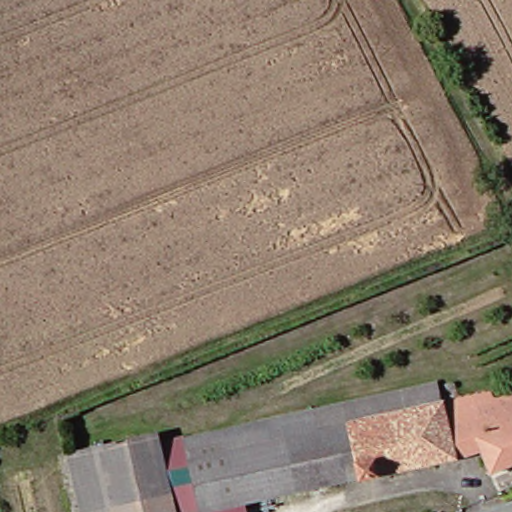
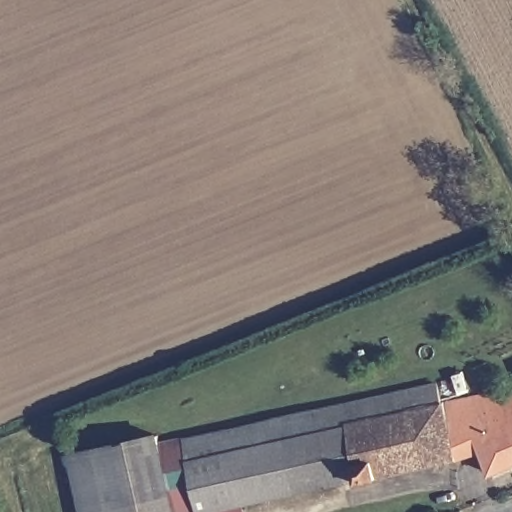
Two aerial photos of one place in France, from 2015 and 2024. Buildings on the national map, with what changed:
unchanged [(368,485),(359,407),(452,392),(454,407),(462,471),(368,485)]
unchanged [(495,448),(491,402),(506,399),(510,406),(512,405),(512,476),(501,482),(493,466),(486,453),(495,448)]
unchanged [(491,402),(495,448),(486,453),(493,466),(462,471),(454,407),(491,402)]
unchanged [(368,485),(209,510),(197,435),(359,407),(368,485)]
unchanged [(181,512),(87,512),(76,443),(168,430),(181,512)]

